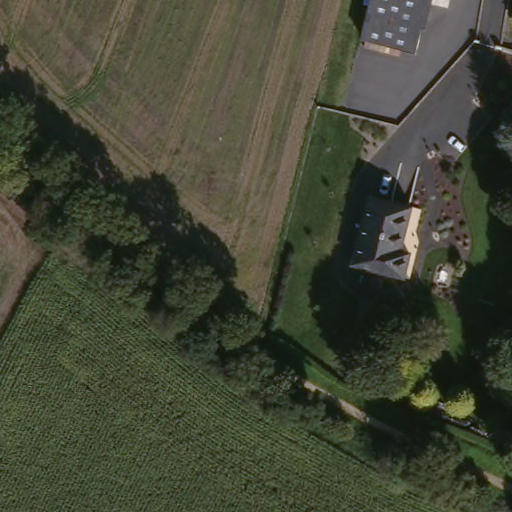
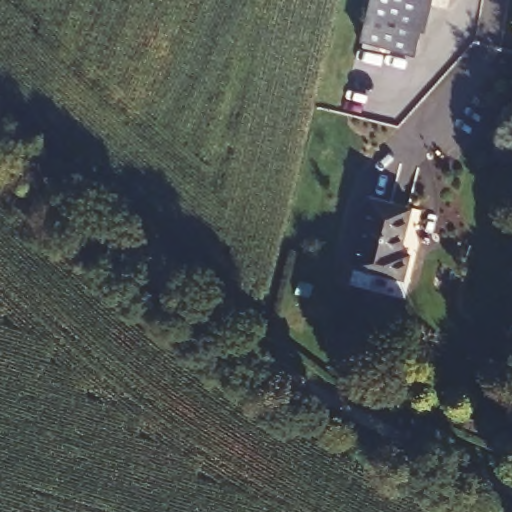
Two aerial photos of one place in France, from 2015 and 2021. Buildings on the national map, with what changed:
unchanged [(363,41),(373,0),(429,0),(416,53),(363,41)]
unchanged [(401,251),(410,253),(405,278),(352,266),(368,198),(412,208),(401,251)]

